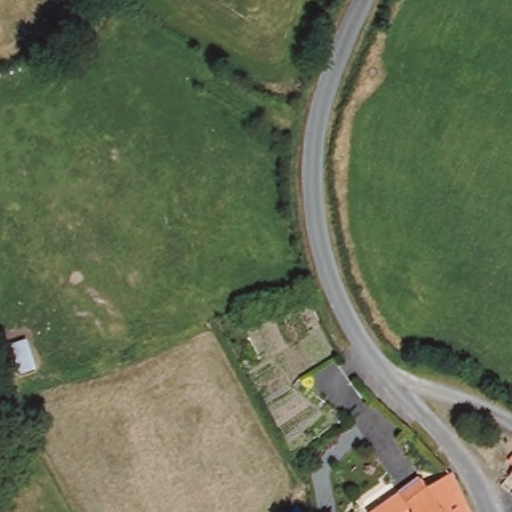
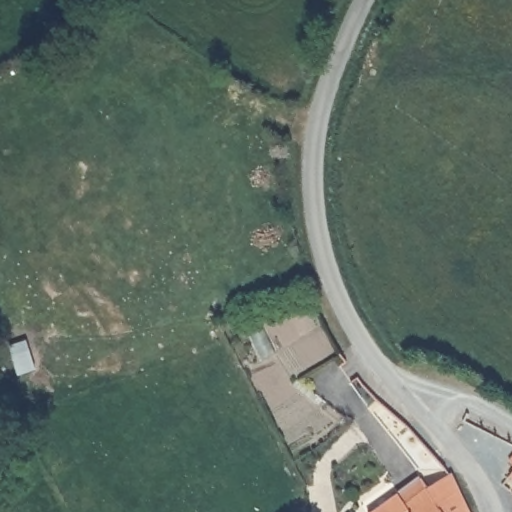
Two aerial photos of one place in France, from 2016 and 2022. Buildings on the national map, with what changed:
unchanged [(509,461),(512,460),(512,463),(509,461)]
unchanged [(400,495),(421,479),(427,487),(450,473),(451,472),(470,512),(371,512),(398,492),(400,495)]
unchanged [(509,476),(512,472),(512,478),(509,476)]

